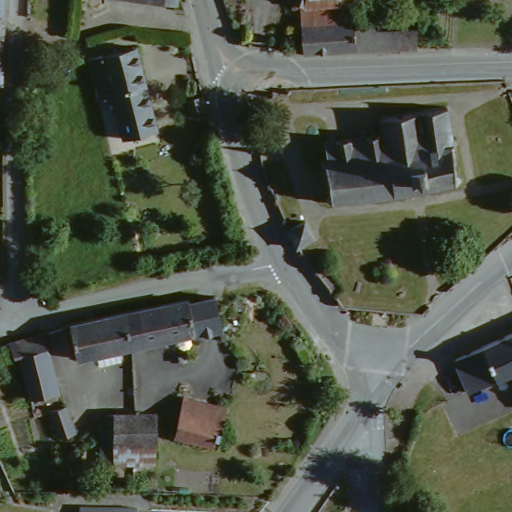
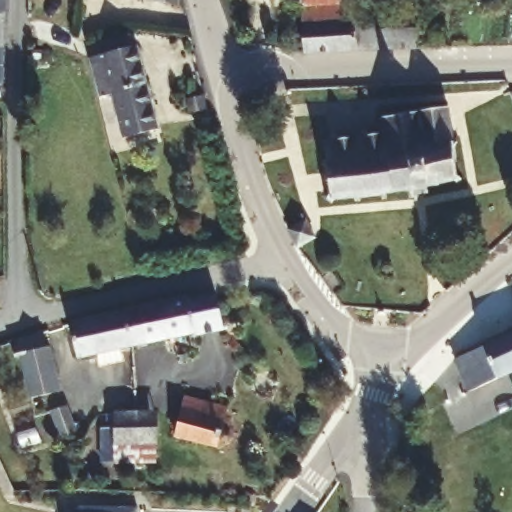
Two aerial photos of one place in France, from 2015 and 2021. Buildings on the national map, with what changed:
unchanged [(7,42),(8,72),(0,73),(0,0),(8,0),(7,42)]
unchanged [(140,0),(176,0),(174,9),(140,0)]
unchanged [(305,8),(286,0),(354,0),(354,7),(357,8),(358,23),(359,53),(307,52),(305,8)]
unchanged [(359,53),(358,23),(376,24),(377,32),(425,31),(425,52),(359,53)]
unchanged [(119,99),(103,104),(91,62),(106,57),(141,52),(154,93),(151,93),(164,133),(130,141),(119,99)]
unchanged [(199,115),(199,118),(196,119),(194,119),(192,118),(190,115),(190,111),(188,98),(199,99),(199,112),(199,115)]
unchanged [(442,117),(455,182),(334,204),(322,152),(379,141),(377,129),(442,117)]
unchanged [(81,352),(73,318),(105,311),(128,306),(192,292),(193,295),(216,291),(220,290),(220,291),(226,325),(199,329),(198,327),(136,340),(124,343),(126,355),(115,357),(104,359),(101,348),(81,352)]
unchanged [(30,394),(20,354),(16,337),(46,329),(60,389),(30,394)]
unchanged [(512,336),(512,341),(510,337),(512,336)]
unchanged [(510,337),(512,341),(512,373),(474,388),(459,358),(510,337)]
unchanged [(177,429),(186,391),(230,404),(222,441),(177,429)]
unchanged [(62,436),(48,407),(62,400),(78,429),(62,436)]
unchanged [(161,444),(122,439),(125,410),(166,412),(161,444)]
unchanged [(125,505),(142,506),(142,512),(84,512),(85,502),(125,505)]

